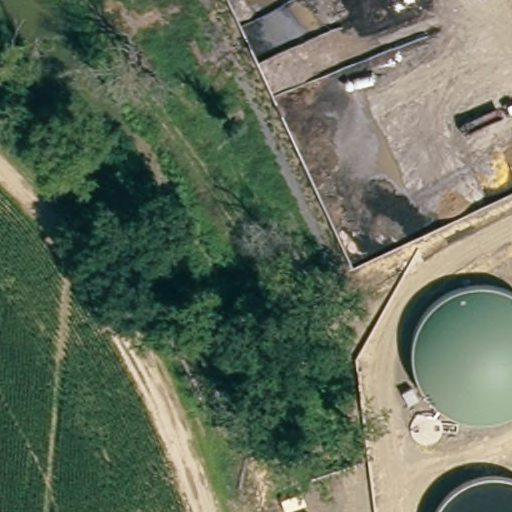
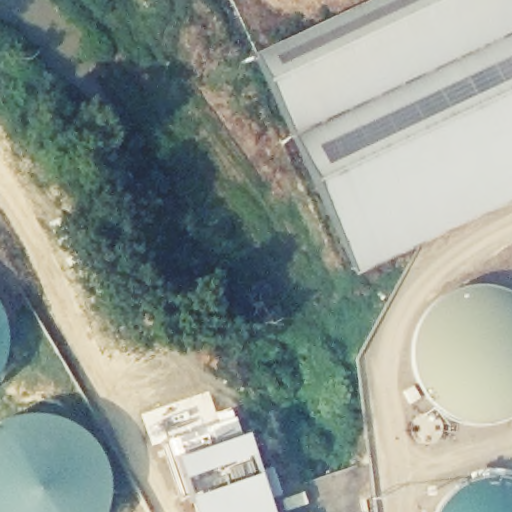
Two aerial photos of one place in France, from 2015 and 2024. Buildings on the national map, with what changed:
new [(251,56),(368,0),(512,0),(512,200),(353,273),(251,56)]
new [(242,434),(270,512),(193,512),(174,458),(242,434)]

